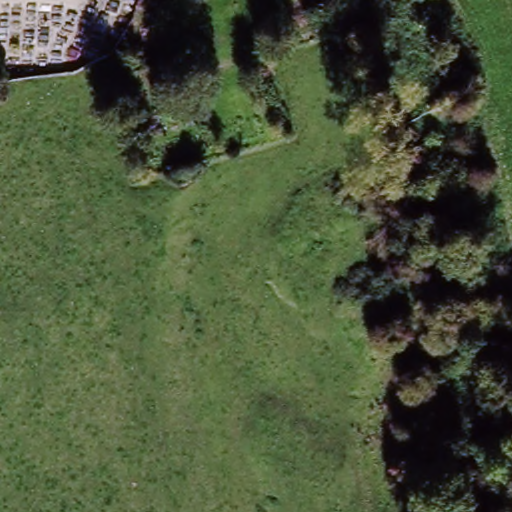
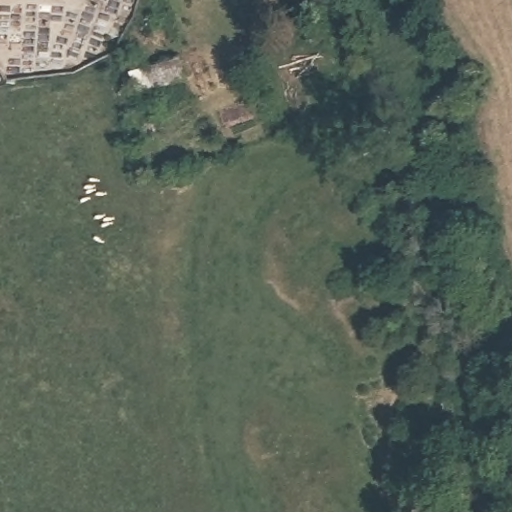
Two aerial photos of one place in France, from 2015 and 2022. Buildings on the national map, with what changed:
unchanged [(137,76),(186,60),(192,76),(143,94),(137,76)]

